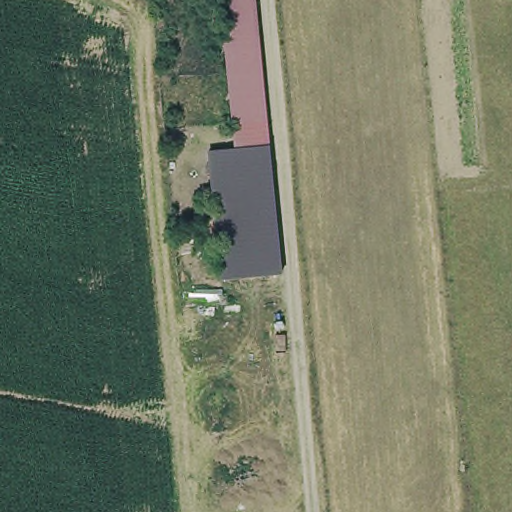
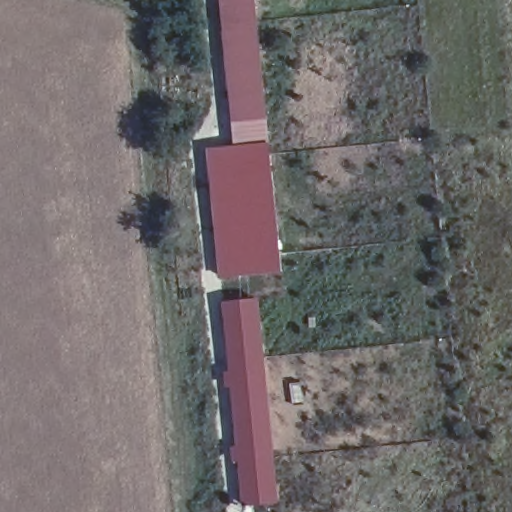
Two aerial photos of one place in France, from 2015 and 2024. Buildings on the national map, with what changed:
unchanged [(217,0),(250,0),(263,140),(231,144),(217,0)]
unchanged [(231,144),(263,140),(276,268),(216,275),(204,146),(231,144)]
new [(278,504),(242,507),(222,302),(258,299),(278,504)]

